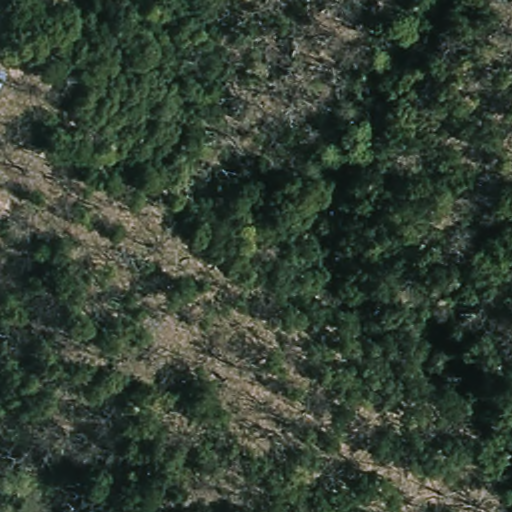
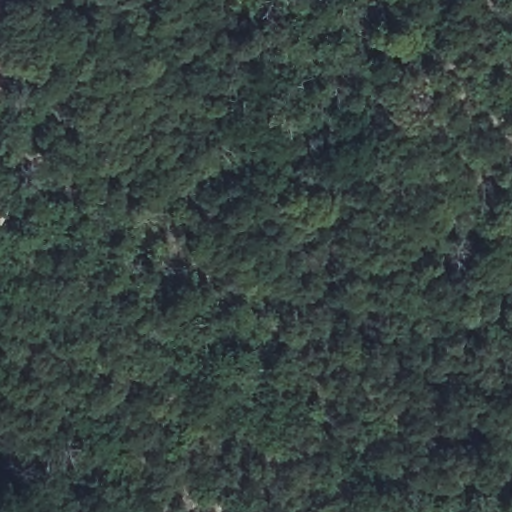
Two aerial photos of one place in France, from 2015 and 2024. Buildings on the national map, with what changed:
unchanged [(0,214),(0,193),(9,198),(0,214)]

